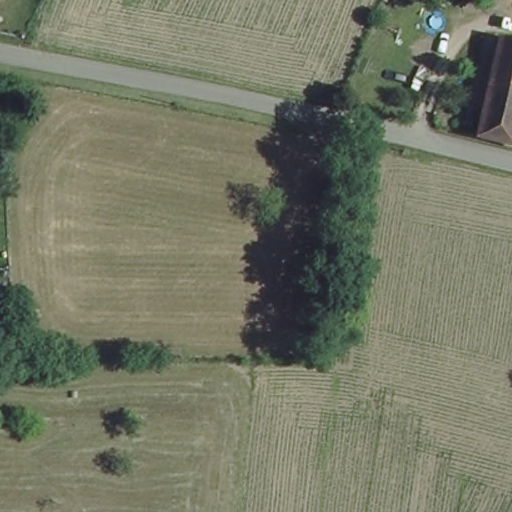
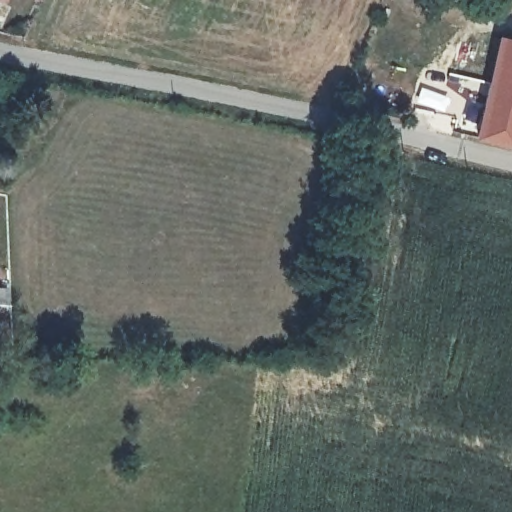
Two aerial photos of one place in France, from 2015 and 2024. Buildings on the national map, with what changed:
unchanged [(0,0),(6,0),(5,5),(0,3),(0,0)]
unchanged [(512,40),(512,150),(479,141),(500,37),(512,40)]

